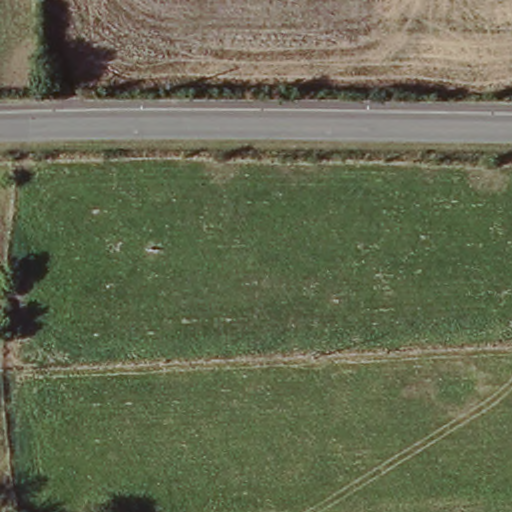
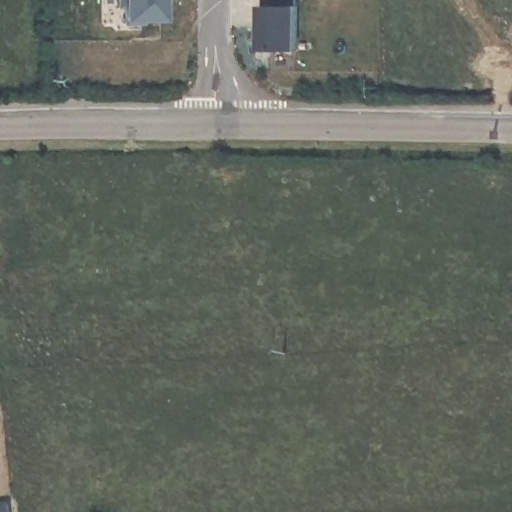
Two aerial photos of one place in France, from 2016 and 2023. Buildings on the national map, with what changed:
new [(163,21),(123,22),(122,0),(163,0),(163,21)]
new [(299,49),(262,50),(260,3),(265,4),(265,0),(297,0),(299,49)]

